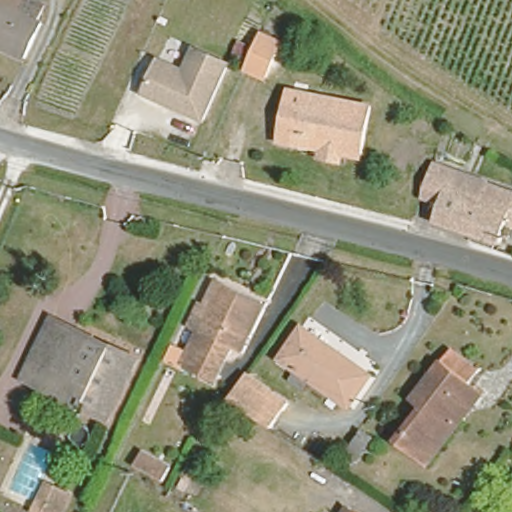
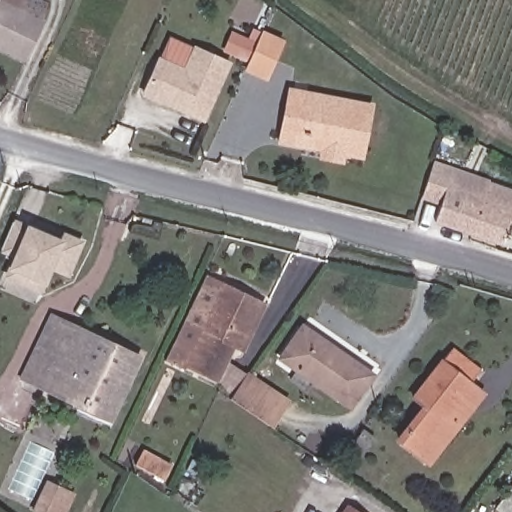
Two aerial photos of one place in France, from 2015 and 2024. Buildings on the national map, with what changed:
unchanged [(0,0),(21,0),(15,14),(37,24),(20,60),(0,51),(0,0)]
unchanged [(285,42),(267,80),(248,70),(266,32),(285,42)]
unchanged [(205,120),(144,94),(160,55),(183,65),(192,45),(232,61),(205,120)]
unchanged [(318,159),(319,155),(298,150),(274,143),(282,111),(287,92),(370,113),(357,162),(338,157),(336,164),(318,159)]
unchanged [(500,240),(435,218),(440,202),(420,195),(431,163),(451,170),(512,189),(512,201),(500,240)]
new [(16,222),(61,244),(64,237),(82,245),(67,273),(51,266),(37,290),(7,276),(17,256),(3,249),(16,222)]
unchanged [(266,298),(241,348),(232,346),(216,376),(172,360),(216,273),(266,298)]
unchanged [(139,354),(106,415),(24,368),(57,308),(139,354)]
unchanged [(348,405),(280,356),(298,330),(302,325),(353,362),(370,373),(348,405)]
unchanged [(411,389),(449,340),(460,348),(476,361),(467,372),(480,383),(456,416),(425,455),(395,432),(421,398),(411,389)]
unchanged [(249,365),(291,395),(273,420),(232,391),(249,365)]
unchanged [(362,429),(371,436),(356,456),(347,449),(362,429)]
unchanged [(47,512),(37,507),(41,500),(51,481),(59,485),(73,493),(64,512),(47,512)]
unchanged [(499,512),(497,510),(512,488),(512,512),(499,512)]
unchanged [(358,512),(350,512),(352,508),(358,512)]

